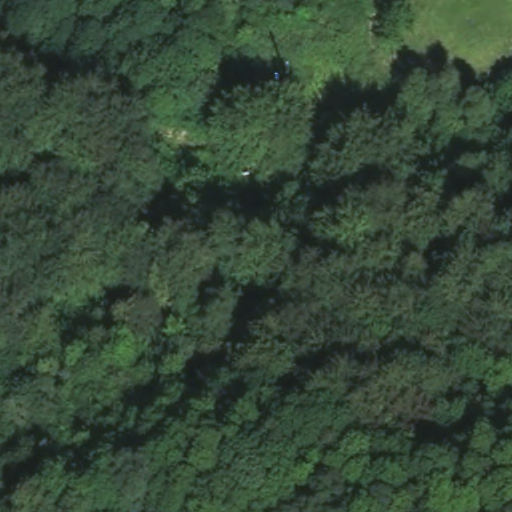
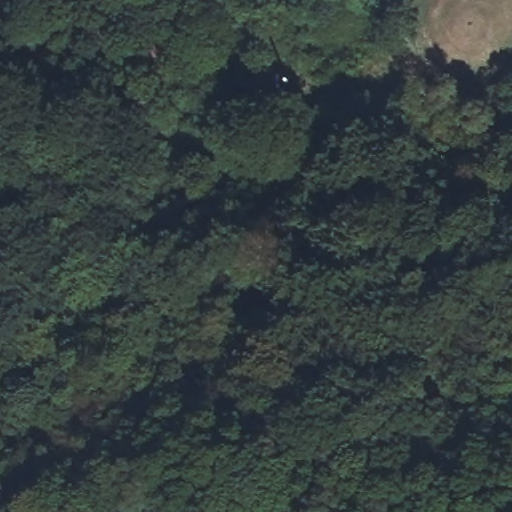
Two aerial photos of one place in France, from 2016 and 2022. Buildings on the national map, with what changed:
unchanged [(256,163),(262,207),(217,213),(215,202),(233,196),(230,171),(256,163)]

